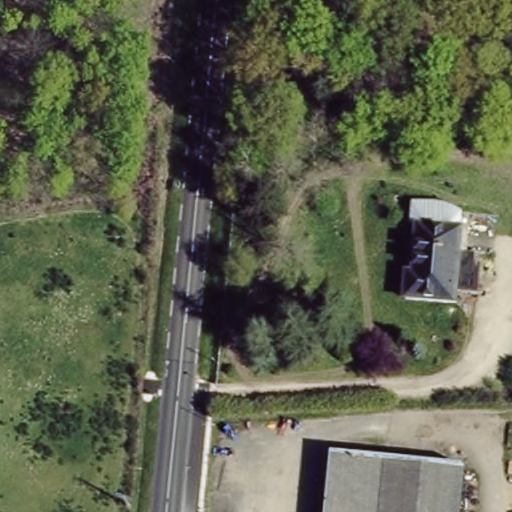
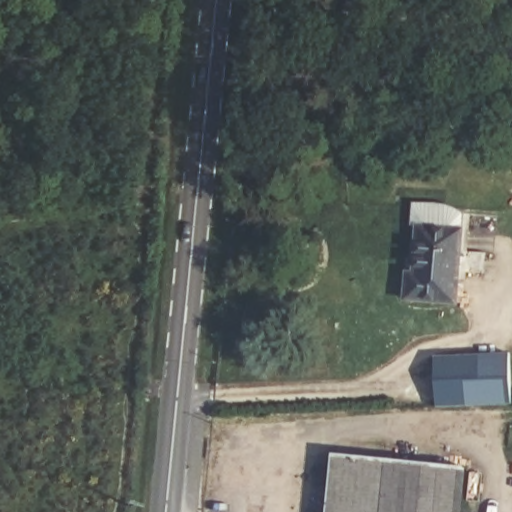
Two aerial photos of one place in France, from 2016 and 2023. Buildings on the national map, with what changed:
unchanged [(404,298),(407,268),(412,268),(416,227),(410,225),(412,203),(444,202),(462,213),(457,302),(404,299),(404,298)]
new [(437,405),(435,356),(511,353),(512,390),(512,403),(437,405)]
unchanged [(461,512),(323,512),(330,452),(466,467),(461,512)]

